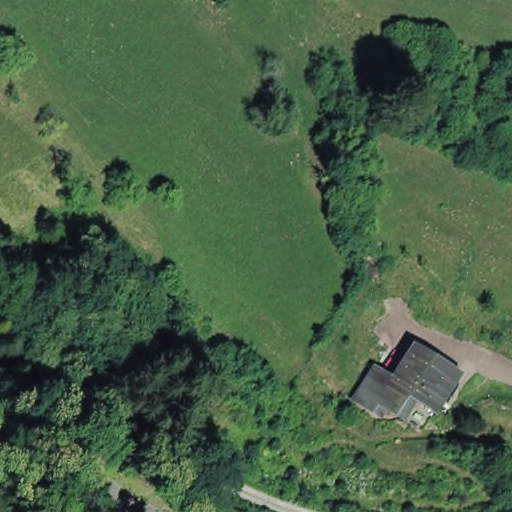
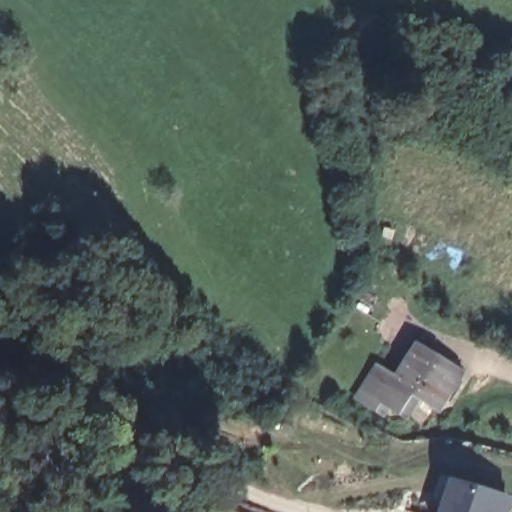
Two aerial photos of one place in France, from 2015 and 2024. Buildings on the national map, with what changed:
unchanged [(411,406),(416,400),(407,393),(393,381),(416,353),(450,380),(454,375),(462,381),(434,415),(429,422),(411,406)]
unchanged [(406,399),(396,413),(384,404),(377,412),(356,395),(377,368),(393,381),(407,393),(405,397),(406,399)]
new [(508,512),(435,512),(445,478),(512,498),(508,512)]

